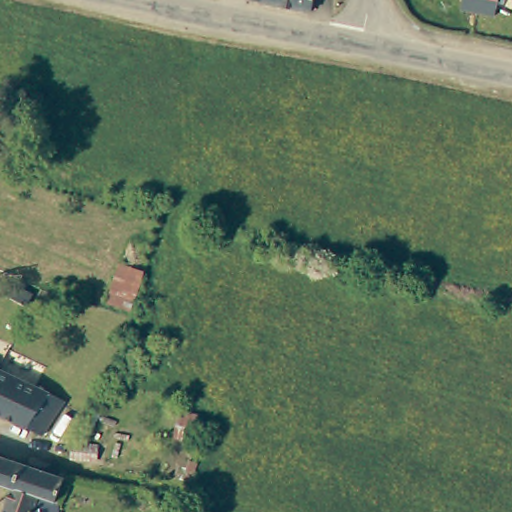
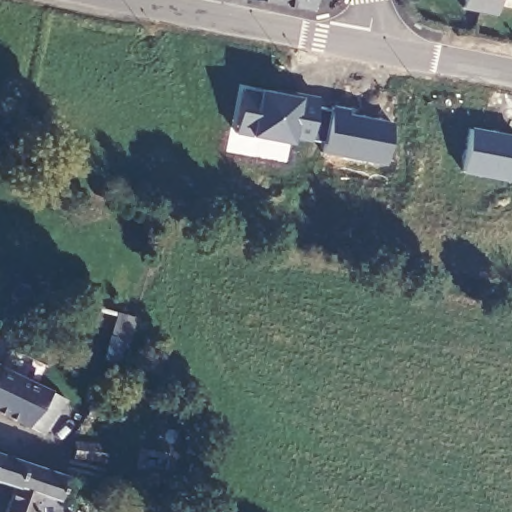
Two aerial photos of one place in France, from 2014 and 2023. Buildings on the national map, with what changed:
unchanged [(258,0),(313,0),(312,10),(258,0)]
unchanged [(459,4),(460,0),(495,0),(493,11),(459,4)]
new [(325,142),(293,136),(292,142),(237,131),(245,88),(261,91),(261,90),(274,92),(274,89),(319,97),(318,106),(333,109),(325,142)]
new [(351,109),(349,114),(394,123),(386,164),(324,152),(333,106),(351,109)]
new [(464,172),(473,130),(512,138),(512,181),(464,172)]
unchanged [(148,261),(138,307),(131,306),(112,300),(121,256),(148,261)]
unchanged [(9,372),(44,390),(53,393),(34,432),(26,427),(0,415),(0,368),(3,370),(9,372)]
unchanged [(199,406),(198,425),(180,424),(181,405),(199,406)]
unchanged [(111,431),(105,456),(71,447),(88,425),(111,431)]
unchanged [(0,453),(10,456),(63,474),(55,501),(38,496),(8,487),(0,485),(0,453)]
unchanged [(33,512),(0,512),(8,487),(38,496),(33,512)]
unchanged [(55,501),(58,512),(33,512),(38,496),(55,501)]

